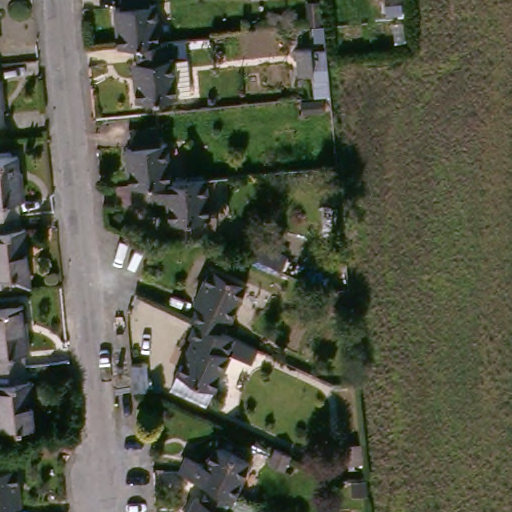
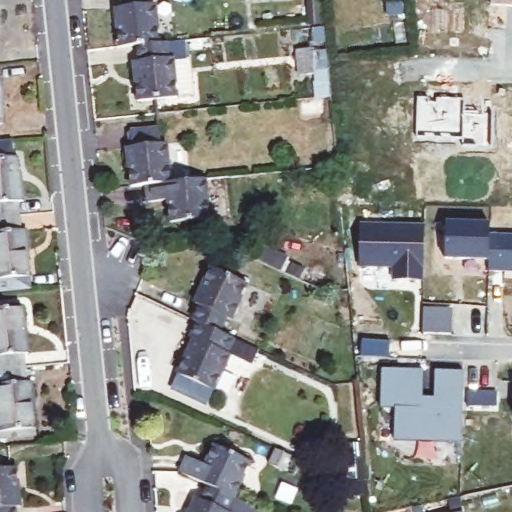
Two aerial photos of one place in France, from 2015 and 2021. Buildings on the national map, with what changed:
unchanged [(129,51),(113,53),(111,16),(119,15),(118,6),(143,1),(144,11),(150,10),(154,48),(129,51)]
unchanged [(316,44),(318,78),(304,80),(302,53),(288,55),(285,30),(299,28),(314,25),(316,44)]
unchanged [(181,81),(183,98),(169,100),(125,105),(124,73),(129,71),(129,51),(154,48),(159,47),(179,45),(181,81)]
unchanged [(0,77),(1,77),(4,121),(0,122),(0,77)]
unchanged [(144,178),(129,180),(126,141),(134,141),(133,126),(159,121),(160,136),(164,136),(169,175),(144,178)]
unchanged [(24,204),(20,204),(20,215),(0,218),(0,161),(21,158),(24,204)]
unchanged [(169,215),(168,193),(147,196),(144,178),(169,175),(204,171),(207,210),(169,215)]
unchanged [(0,218),(20,215),(21,236),(27,235),(29,278),(30,290),(0,294),(0,218)]
new [(489,223),(489,259),(446,258),(446,223),(489,223)]
new [(362,225),(424,226),(425,282),(394,281),(393,266),(360,267),(362,225)]
unchanged [(247,240),(253,226),(280,239),(275,253),(247,240)]
unchanged [(227,315),(221,330),(200,321),(194,319),(200,305),(196,303),(213,265),(248,282),(232,317),(227,315)]
unchanged [(29,355),(29,365),(0,369),(0,313),(31,310),(34,354),(29,355)]
unchanged [(259,364),(232,354),(214,389),(178,372),(194,338),(189,335),(194,319),(200,321),(221,330),(266,348),(259,364)]
unchanged [(37,383),(39,428),(1,432),(1,427),(0,427),(0,369),(29,365),(30,384),(37,383)]
new [(462,441),(395,439),(396,409),(379,407),(382,368),(423,370),(422,397),(434,398),(436,369),(463,372),(462,441)]
unchanged [(214,389),(203,412),(196,409),(165,397),(178,372),(214,389)]
unchanged [(212,483),(212,482),(185,471),(189,457),(208,466),(218,447),(253,461),(240,495),(212,483)]
unchanged [(24,507),(19,508),(19,512),(0,512),(0,472),(20,470),(24,507)]
unchanged [(254,512),(191,512),(198,497),(204,499),(212,483),(240,495),(259,502),(254,512)]
new [(463,512),(457,512),(463,511),(463,512)]

